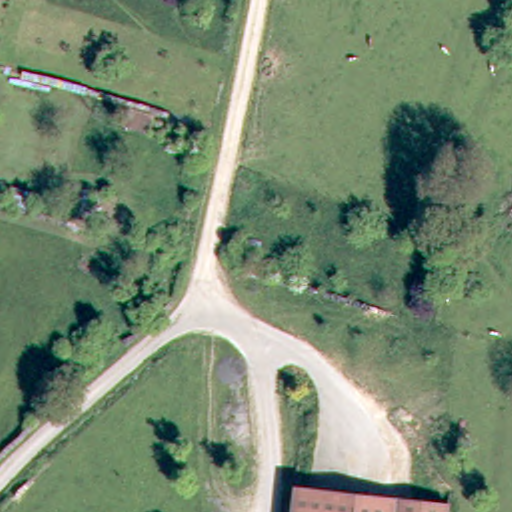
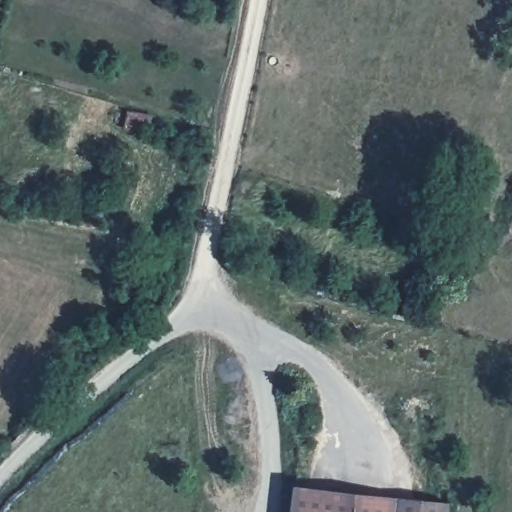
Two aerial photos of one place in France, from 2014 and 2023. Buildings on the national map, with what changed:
unchanged [(289,512),(292,485),(446,503),(445,512),(289,512)]

